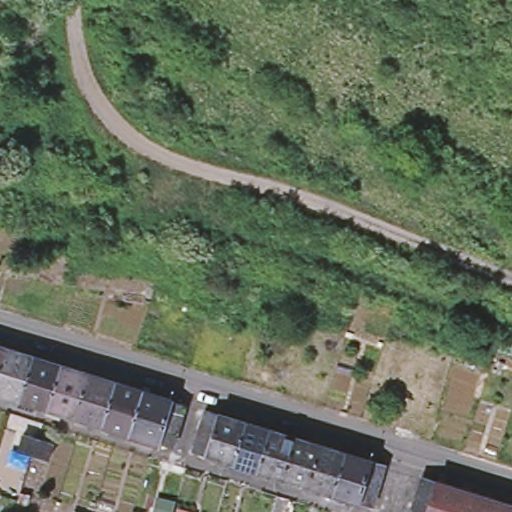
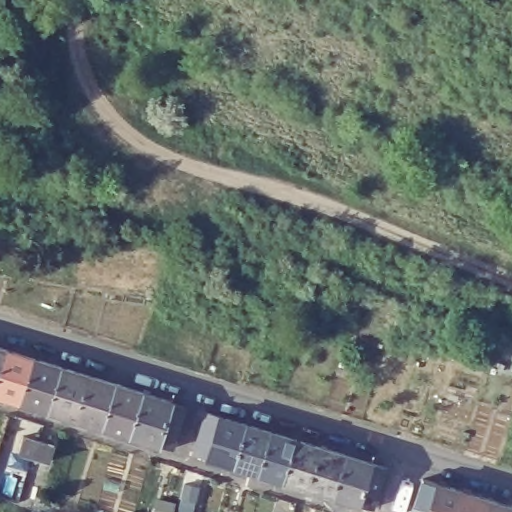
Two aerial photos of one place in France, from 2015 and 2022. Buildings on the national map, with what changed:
unchanged [(6,405),(0,403),(0,348),(8,351),(36,359),(63,367),(91,377),(118,385),(146,393),(174,402),(173,405),(187,410),(185,417),(183,423),(179,436),(177,442),(175,448),(161,445),(160,446),(145,441),(143,447),(130,443),(131,437),(117,432),(115,438),(102,435),(105,428),(91,424),(88,431),(75,427),(77,420),(63,416),(61,422),(48,417),(50,412),(37,407),(35,413),(20,408),(22,402),(8,398),(6,405)]
unchanged [(250,470),(247,477),(234,472),(236,466),(225,462),(223,468),(210,464),(211,458),(209,457),(195,453),(200,439),(203,427),(205,421),(208,413),(222,417),(248,425),(273,433),(297,441),(323,448),(347,457),(374,465),(388,469),(385,477),(383,483),(380,496),(375,509),(361,505),(349,501),(347,508),(333,503),(335,497),(325,493),(322,500),(308,496),(311,488),(300,485),(297,492),(283,487),(285,481),(275,477),(272,484),(258,480),(260,473),(250,470)]
unchanged [(416,424),(412,437),(400,432),(405,421),(416,424)]
unchanged [(49,463),(35,458),(19,452),(25,436),(40,442),(55,447),(49,463)]
unchanged [(420,495),(425,480),(440,484),(465,492),(490,500),(512,507),(512,512),(415,512),(417,507),(420,495)]
unchanged [(31,500),(29,508),(20,506),(12,503),(15,495),(22,497),(31,500)]

